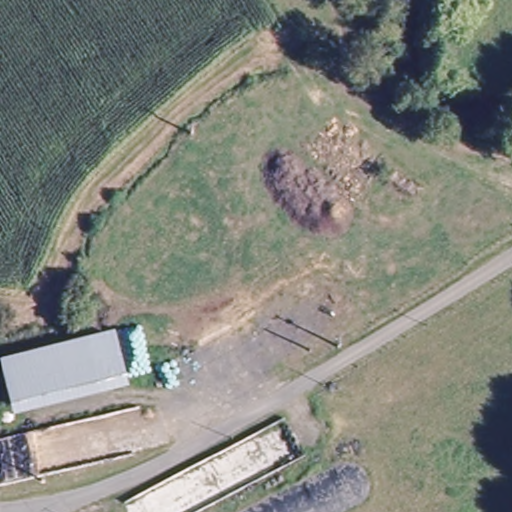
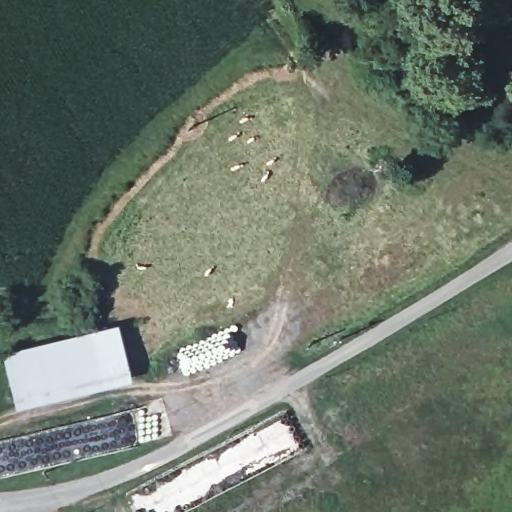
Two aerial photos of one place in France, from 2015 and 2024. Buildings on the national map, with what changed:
unchanged [(120,325),(137,380),(16,410),(2,350),(120,325)]

